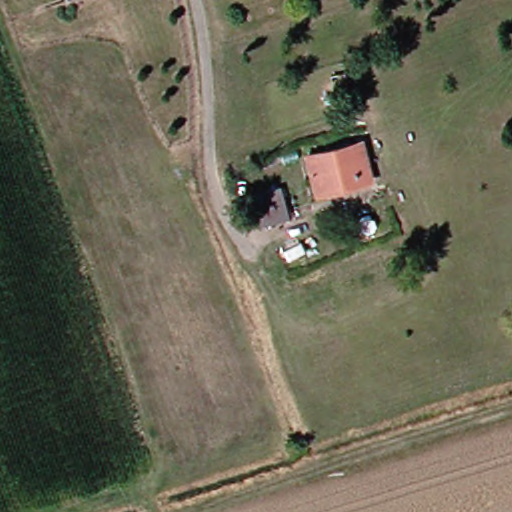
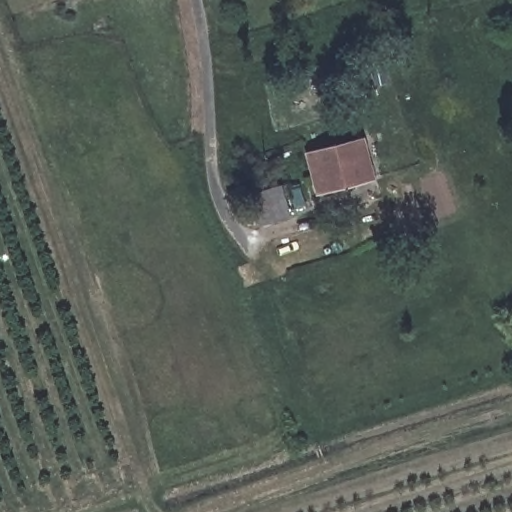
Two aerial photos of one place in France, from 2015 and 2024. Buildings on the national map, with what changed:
unchanged [(366,143),(374,175),(321,190),(314,154),(366,143)]
unchanged [(291,212),(260,220),(253,194),(283,185),(291,212)]

